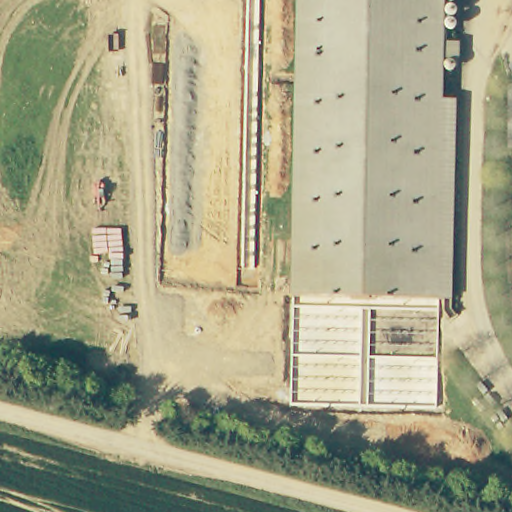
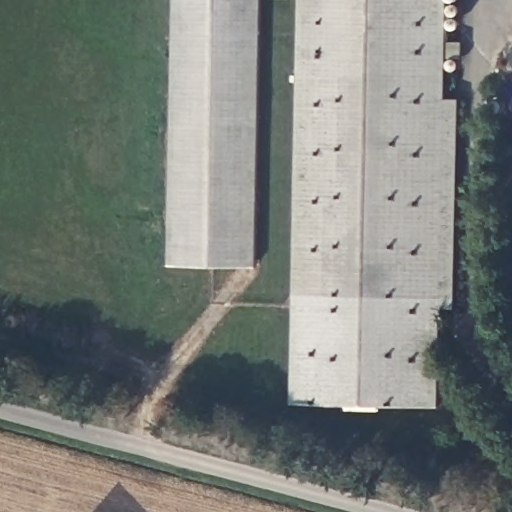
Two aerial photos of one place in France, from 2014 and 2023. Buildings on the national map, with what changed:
new [(167,266),(173,0),(261,0),(255,267),(167,266)]
unchanged [(454,101),(451,307),(440,308),(438,406),(285,409),(297,0),(443,0),(438,100),(454,101)]
unchanged [(511,148),(512,118),(512,148),(511,148)]

